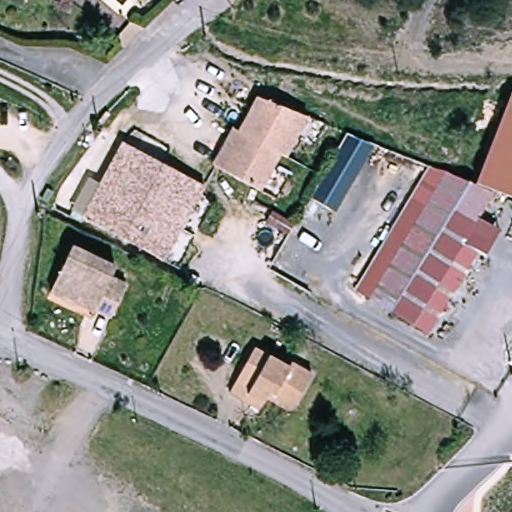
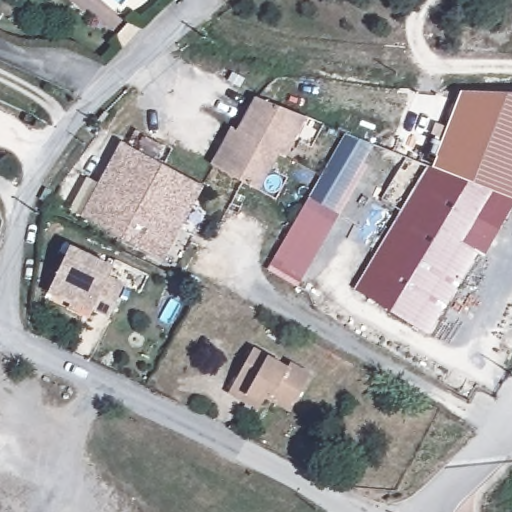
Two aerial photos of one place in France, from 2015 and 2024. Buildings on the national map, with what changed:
new [(477,183),(431,166),(459,91),(509,92),(477,183)]
unchanged [(512,196),(499,191),(477,183),(509,92),(512,92),(512,196)]
unchanged [(299,111),(286,148),(280,146),(278,150),(266,185),(216,167),(229,133),(230,128),(236,130),(249,94),(299,111)]
unchanged [(376,145),(336,211),(309,197),(346,133),(376,145)]
unchanged [(123,141),(204,181),(165,257),(85,216),(123,141)]
unchanged [(364,291),(437,169),(454,175),(379,300),(364,291)]
unchanged [(499,191),(467,245),(420,324),(379,300),(454,175),(499,191)]
new [(266,269),(309,197),(336,211),(341,216),(298,289),(266,269)]
unchanged [(500,230),(486,257),(476,251),(432,330),(420,324),(482,220),(500,230)]
unchanged [(70,301),(47,290),(72,244),(114,265),(109,277),(127,286),(111,316),(93,307),(90,312),(70,301)]
unchanged [(268,398),(266,402),(254,396),(250,401),(232,393),(255,348),(284,361),(287,356),(311,369),(296,399),(290,409),(268,398)]

